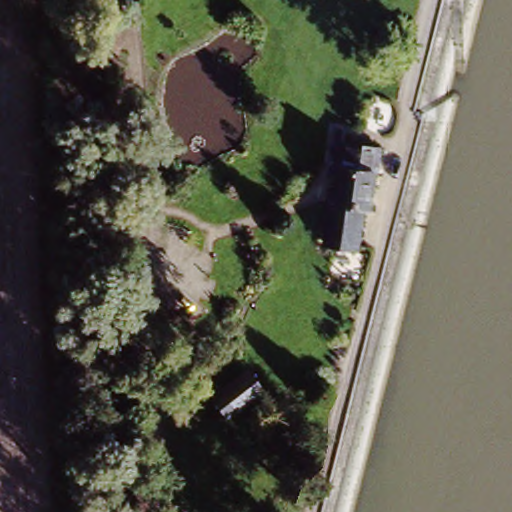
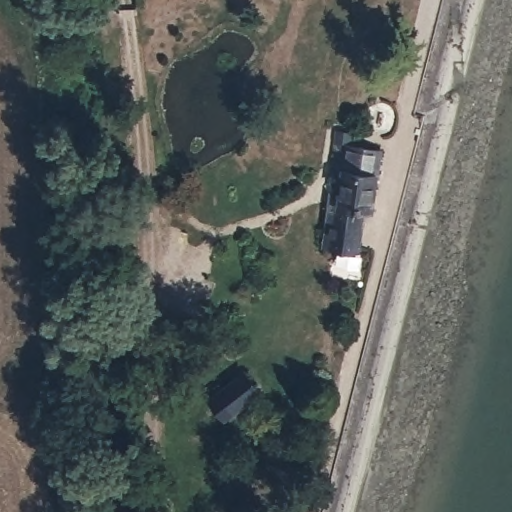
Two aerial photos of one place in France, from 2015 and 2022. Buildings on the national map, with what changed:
unchanged [(328,204),(335,205),(337,182),(323,181),(330,142),(379,153),(368,216),(358,216),(352,248),(321,242),(328,204)]
unchanged [(248,375),(263,395),(235,417),(225,400),(226,390),(248,375)]

